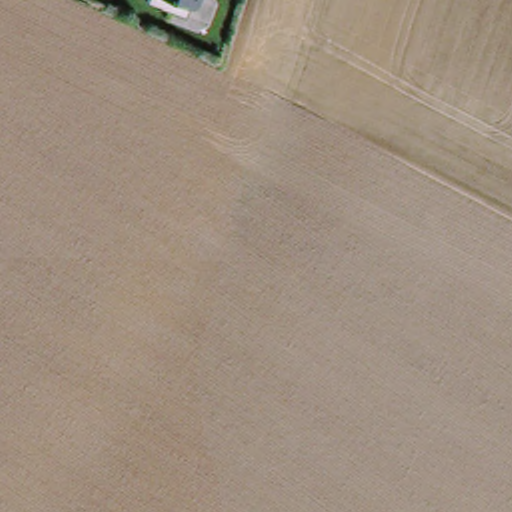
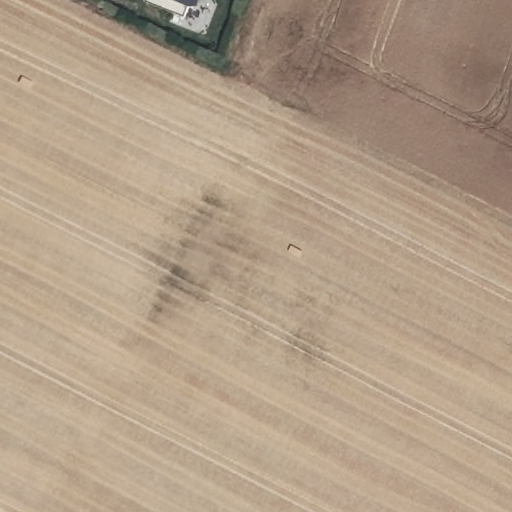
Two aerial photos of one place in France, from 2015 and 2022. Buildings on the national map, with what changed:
unchanged [(193,8),(187,18),(148,3),(149,0),(202,0),(199,10),(193,8)]

